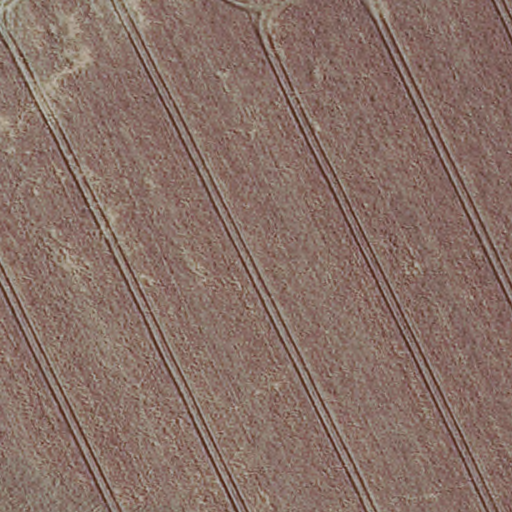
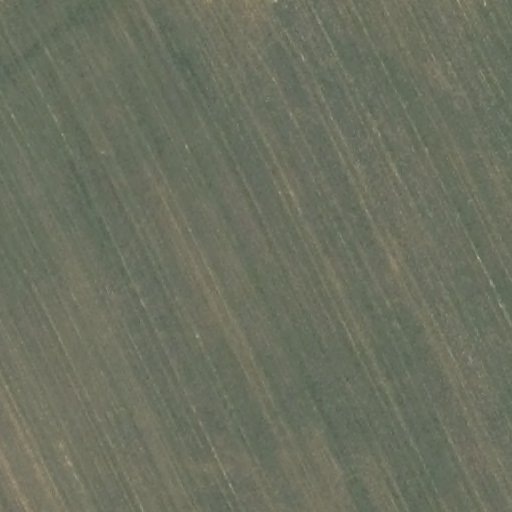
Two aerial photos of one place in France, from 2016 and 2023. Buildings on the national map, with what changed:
[]

